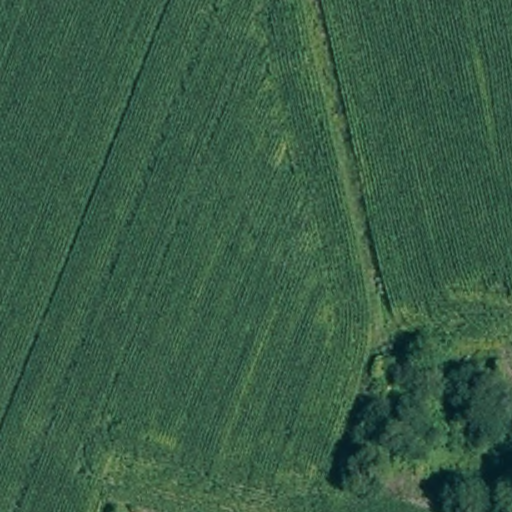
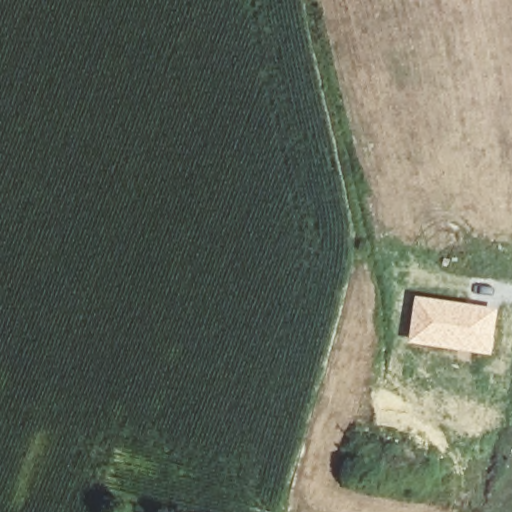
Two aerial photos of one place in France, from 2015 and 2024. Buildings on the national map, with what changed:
new [(417,296),(498,309),(491,356),(409,343),(417,296)]

